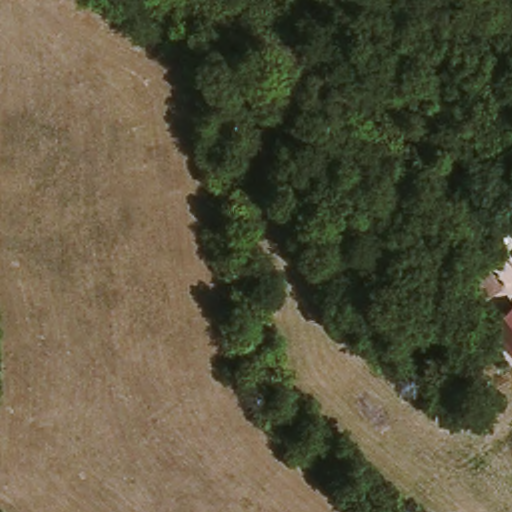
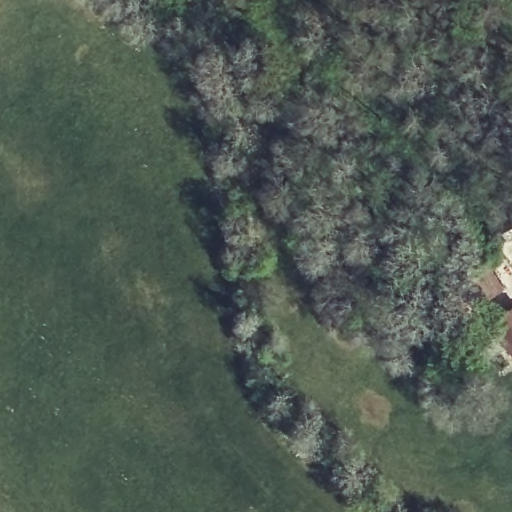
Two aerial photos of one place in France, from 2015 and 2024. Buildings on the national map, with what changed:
unchanged [(499,296),(474,313),(457,289),(482,272),(499,296)]
unchanged [(491,326),(512,310),(512,354),(491,326)]

